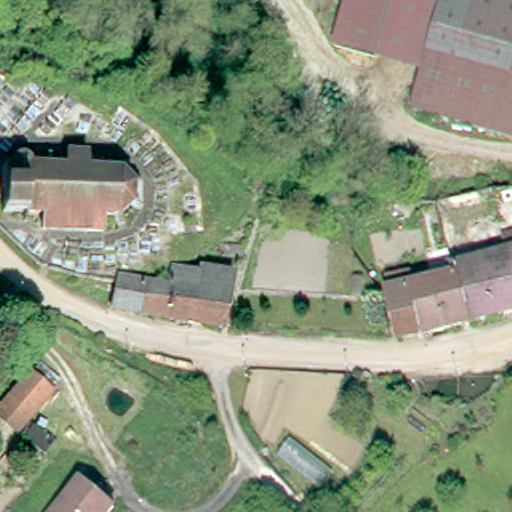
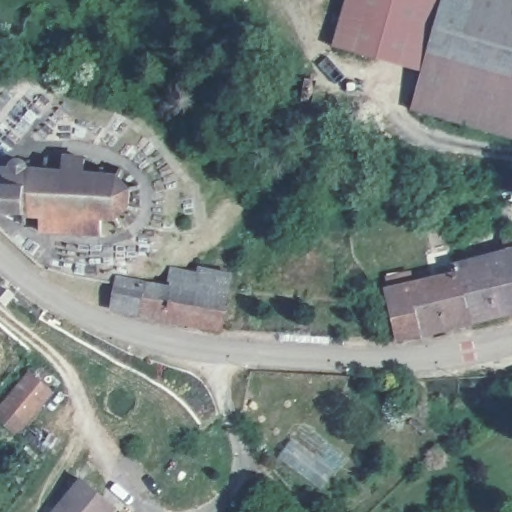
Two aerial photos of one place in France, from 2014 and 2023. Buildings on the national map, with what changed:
unchanged [(340,47),(353,0),(447,0),(432,52),(428,67),(427,71),(340,47)]
unchanged [(447,0),(512,0),(512,74),(432,52),(447,0)]
unchanged [(512,74),(512,135),(416,109),(427,71),(428,67),(432,52),(512,74)]
unchanged [(32,173),(45,173),(46,158),(50,159),(50,173),(65,173),(66,159),(86,160),(86,175),(100,175),(100,168),(102,168),(103,175),(114,176),(122,168),(124,170),(118,176),(127,190),(135,186),(137,190),(127,194),(128,205),(137,209),(135,212),(127,208),(120,214),(115,218),(120,228),(117,229),(112,219),(100,220),(100,234),(38,231),(38,217),(25,216),(25,225),(20,224),(21,215),(0,215),(0,171),(9,171),(10,168),(12,166),(14,164),(17,164),(19,163),(22,164),(24,166),(25,168),(26,169),(27,162),(32,162),(32,173)]
unchanged [(470,322),(455,271),(453,263),(507,249),(505,237),(512,235),(512,312),(470,322)]
unchanged [(202,267),(213,270),(235,274),(223,327),(223,329),(116,307),(120,284),(121,277),(172,287),(176,268),(182,269),(200,274),(202,267)]
unchanged [(423,333),(398,336),(385,287),(390,286),(387,273),(410,268),(413,281),(455,271),(470,322),(423,333)]
unchanged [(17,301),(9,312),(2,306),(10,295),(17,301)]
unchanged [(27,375),(50,392),(25,424),(18,435),(0,421),(0,409),(2,406),(27,375)]
unchanged [(118,510),(117,512),(61,512),(86,482),(118,510)]

